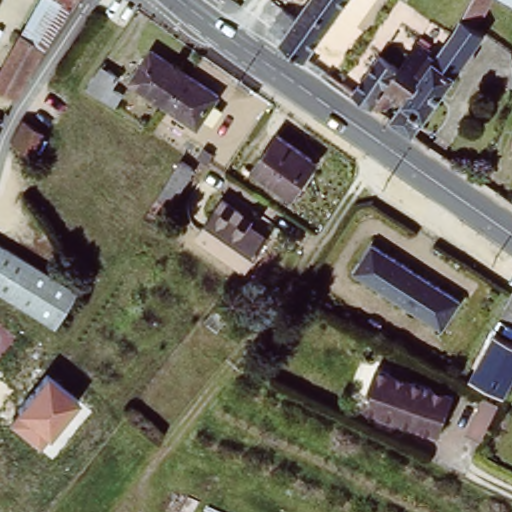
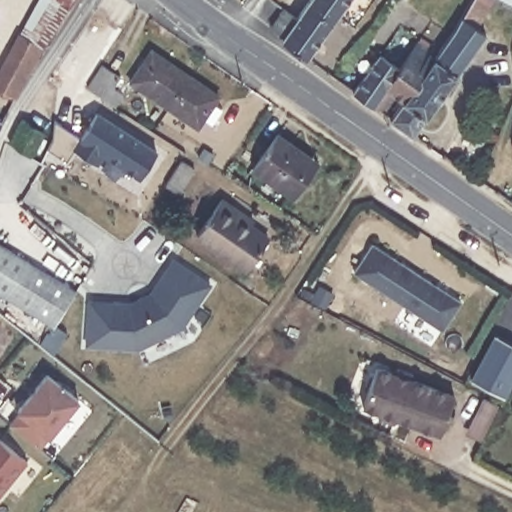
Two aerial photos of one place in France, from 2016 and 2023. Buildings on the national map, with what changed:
unchanged [(42,47),(22,34),(35,13),(39,16),(49,0),(74,0),(70,6),(44,48),(42,47)]
unchanged [(297,20),(311,0),(351,0),(305,62),(280,43),(283,38),(272,30),(285,13),(297,20)]
unchanged [(475,25),(484,32),(411,135),(390,119),(402,101),(436,55),(440,49),(435,45),(440,38),(445,42),(452,32),(473,0),(490,0),(475,25)]
unchanged [(506,0),(512,0),(512,4),(506,0)]
unchanged [(0,92),(0,70),(21,33),(22,34),(42,47),(15,99),(0,92)]
unchanged [(382,113),(352,91),(380,55),(397,68),(417,41),(436,55),(402,101),(395,96),(382,113)]
unchanged [(147,51),(187,77),(165,108),(126,82),(147,51)]
unchanged [(84,87),(97,65),(117,78),(113,85),(122,91),(113,106),(84,87)]
unchanged [(209,105),(215,109),(206,124),(199,119),(193,127),(165,108),(187,77),(215,96),(209,105)]
new [(139,177),(103,155),(97,165),(73,149),(67,160),(47,149),(53,137),(53,120),(80,136),(97,110),(157,149),(139,177)]
unchanged [(32,154),(12,143),(24,120),(44,131),(32,154)]
unchanged [(0,128),(0,121),(2,123),(0,128)]
unchanged [(293,198),(253,168),(278,133),(319,163),(293,198)]
unchanged [(511,150),(512,147),(512,150),(511,150)]
unchanged [(175,194),(162,185),(177,161),(192,170),(175,194)]
unchanged [(238,223),(268,243),(247,274),(198,241),(223,204),(242,217),(238,223)]
unchanged [(440,334),(355,274),(375,246),(460,306),(440,334)]
unchanged [(0,298),(0,250),(75,290),(55,327),(0,298)]
new [(182,328),(137,349),(85,345),(83,298),(129,301),(148,290),(173,257),(210,283),(182,328)]
unchanged [(499,337),(512,344),(512,386),(506,396),(475,379),(499,337)]
unchanged [(382,368),(453,398),(437,437),(365,407),(382,368)]
unchanged [(47,373),(81,399),(40,449),(7,423),(47,373)]
unchanged [(457,434),(475,397),(493,407),(477,444),(457,434)]
new [(0,438),(27,461),(0,495),(0,438)]

